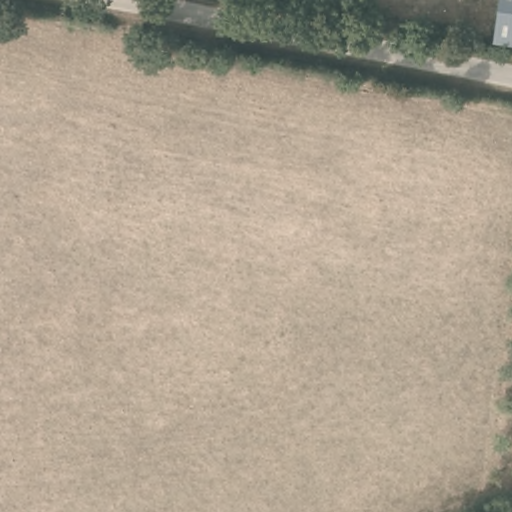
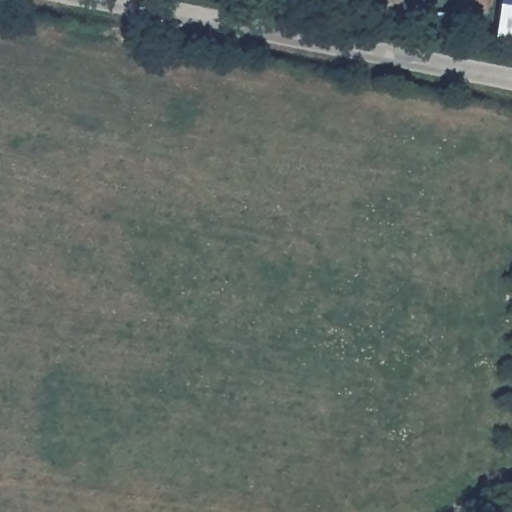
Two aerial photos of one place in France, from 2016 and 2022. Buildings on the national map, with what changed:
unchanged [(493,37),(498,0),(512,0),(512,40),(493,37)]

